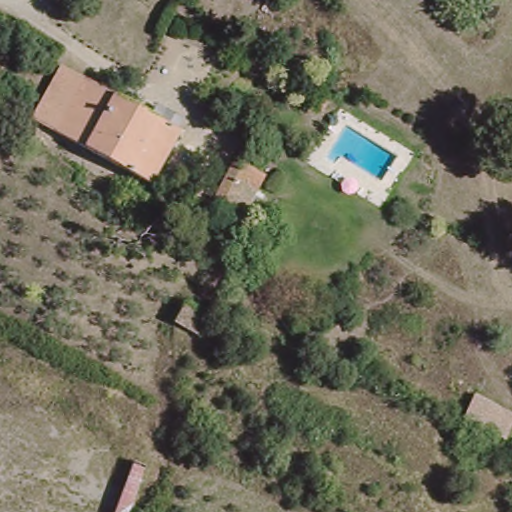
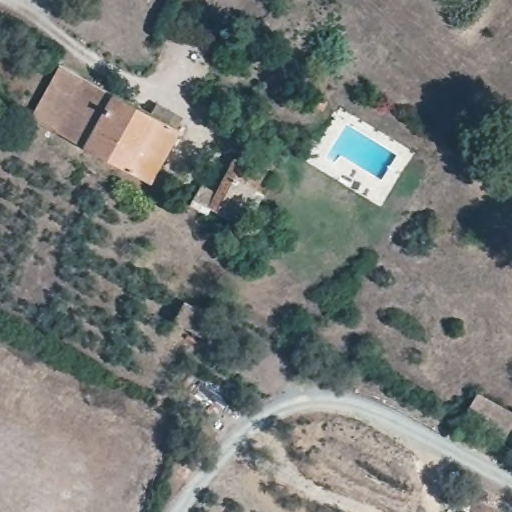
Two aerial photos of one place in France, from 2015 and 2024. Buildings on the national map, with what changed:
unchanged [(152,189),(34,126),(64,69),(182,133),(152,189)]
unchanged [(197,210),(210,188),(225,197),(242,163),(270,178),(242,229),(215,214),(212,218),(197,210)]
unchanged [(188,328),(174,321),(185,302),(191,305),(199,309),(212,316),(201,335),(188,328)]
unchanged [(470,393),(512,413),(512,417),(497,442),(456,421),(470,393)]

